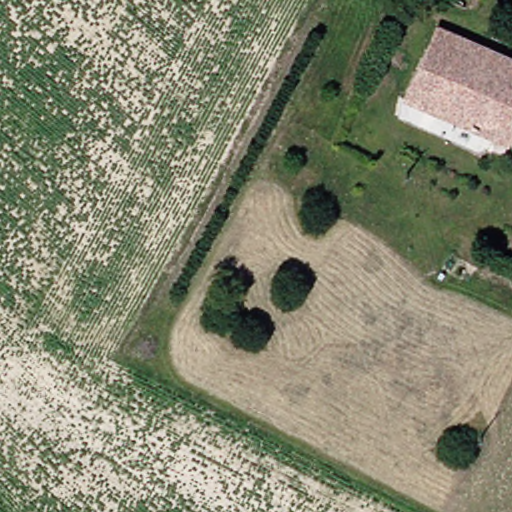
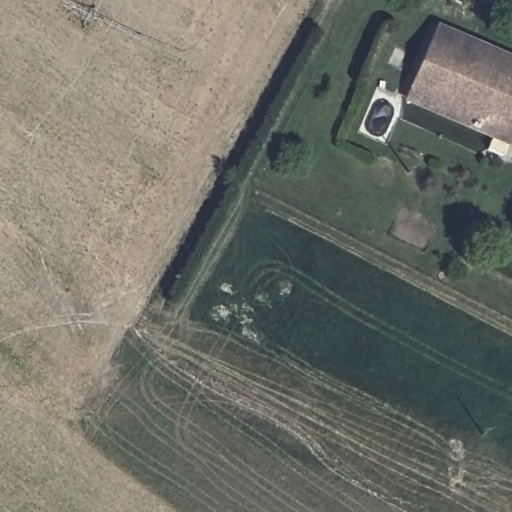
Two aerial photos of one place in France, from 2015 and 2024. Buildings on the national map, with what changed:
unchanged [(489,153),(480,149),(485,137),(400,99),(430,29),(512,65),(512,107),(489,153)]

